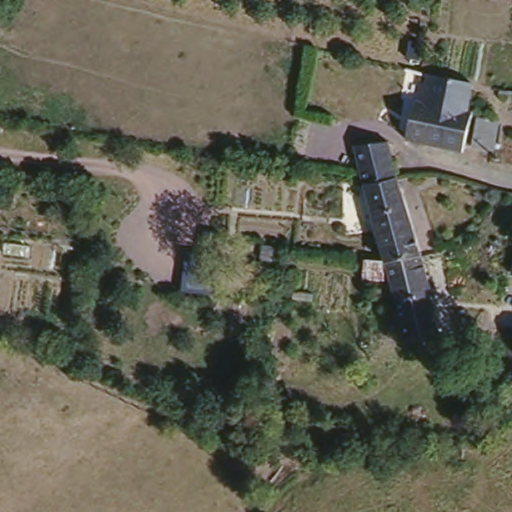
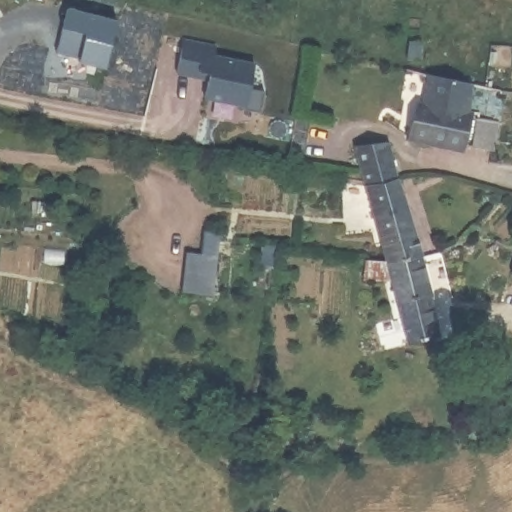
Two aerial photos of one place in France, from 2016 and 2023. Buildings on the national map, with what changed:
new [(117,20),(104,69),(79,62),(81,56),(56,51),(62,27),(68,8),(117,20)]
new [(217,42),(215,53),(255,62),(250,86),(263,90),(259,111),(204,99),(210,79),(177,75),(184,37),(217,42)]
unchanged [(406,59),(408,42),(421,43),(419,61),(406,59)]
unchanged [(401,131),(413,92),(417,92),(422,65),(446,71),(467,74),(463,102),(467,102),(457,142),(401,131)]
unchanged [(471,109),(492,112),(487,141),(466,137),(471,109)]
unchanged [(378,215),(367,219),(356,178),(367,178),(359,146),(392,142),(426,257),(391,258),(378,215)]
unchanged [(214,268),(209,295),(179,290),(186,250),(202,253),(206,230),(221,232),(214,268)]
unchanged [(272,266),(271,270),(259,266),(262,245),(274,250),(272,266)]
unchanged [(436,296),(435,297),(443,337),(411,344),(395,281),(368,280),(371,261),(371,260),(391,258),(426,257),(436,296)]
unchanged [(247,417),(267,421),(265,432),(245,428),(247,417)]

